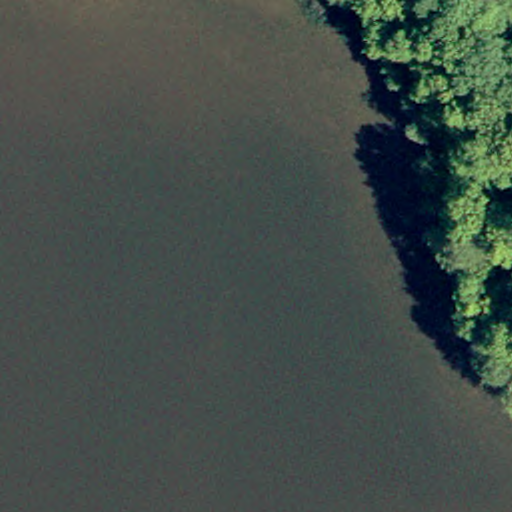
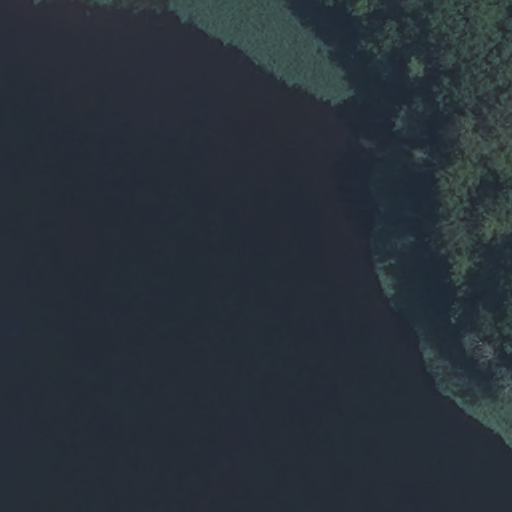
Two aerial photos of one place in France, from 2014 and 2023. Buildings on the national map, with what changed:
[]

